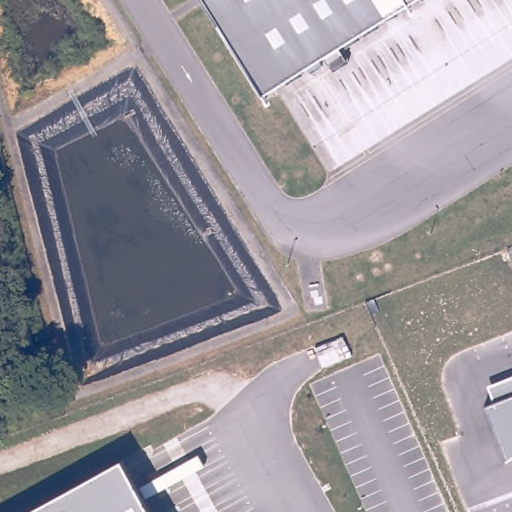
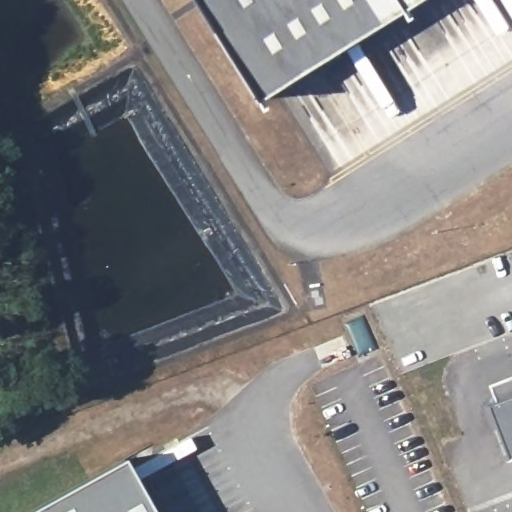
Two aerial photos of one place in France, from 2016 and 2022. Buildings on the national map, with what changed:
unchanged [(204,0),(419,0),(264,97),(204,0)]
unchanged [(506,461),(486,407),(493,404),(487,387),(512,377),(512,457),(506,461)]
unchanged [(124,460),(152,512),(29,512),(124,460)]

